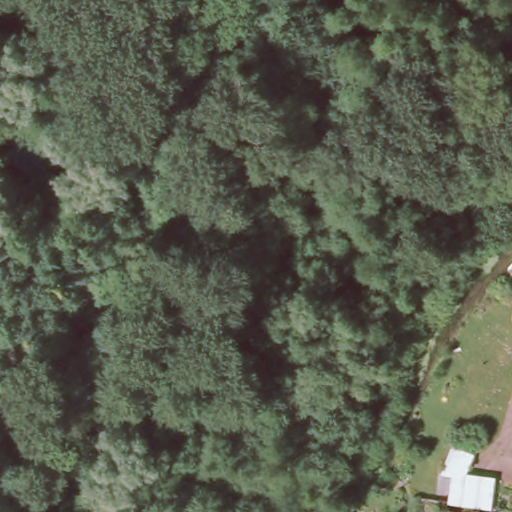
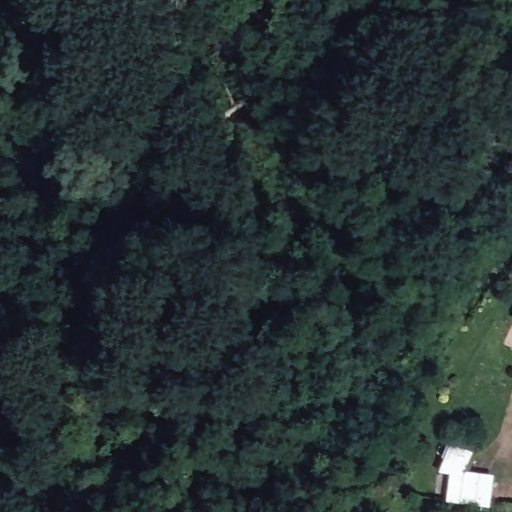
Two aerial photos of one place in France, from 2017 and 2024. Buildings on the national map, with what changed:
unchanged [(495,507),(448,502),(452,477),(441,474),(451,444),(476,449),(470,474),(497,476),(495,507)]

